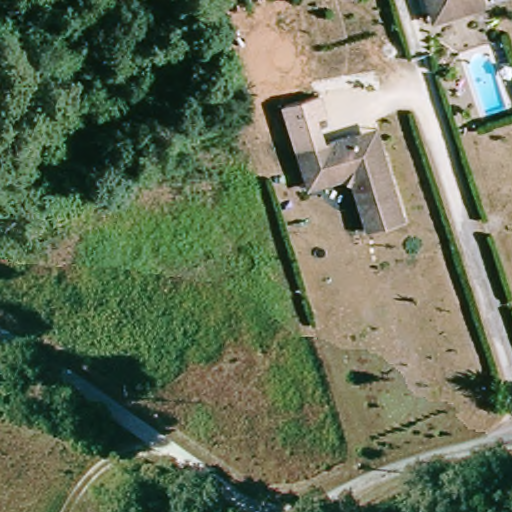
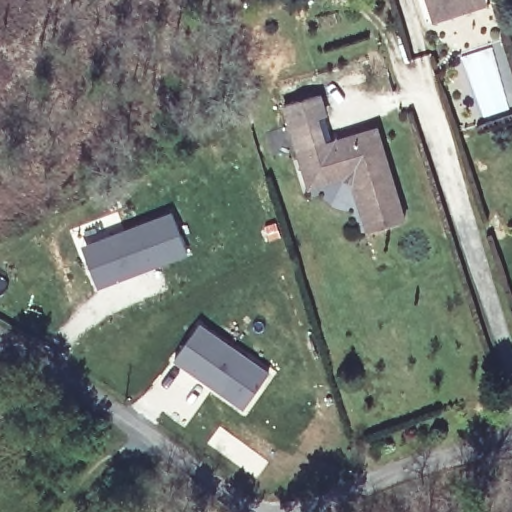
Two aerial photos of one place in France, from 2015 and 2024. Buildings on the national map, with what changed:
unchanged [(434,0),(453,0),(454,1),(459,0),(494,0),(495,4),(446,20),(441,21),(438,14),(434,0)]
unchanged [(454,1),(453,0),(459,0),(454,1)]
unchanged [(328,112),(320,115),(327,138),(295,149),(281,103),(321,92),(328,112)]
unchanged [(377,229),(362,180),(353,176),(336,180),(318,185),(307,149),(315,147),(359,135),(387,127),(395,153),(414,218),(377,229)]
new [(98,288),(81,246),(170,211),(187,253),(98,288)]
new [(200,325),(266,374),(243,406),(176,359),(200,325)]

